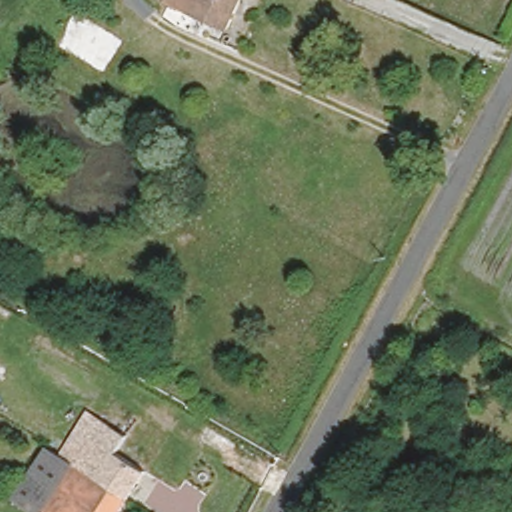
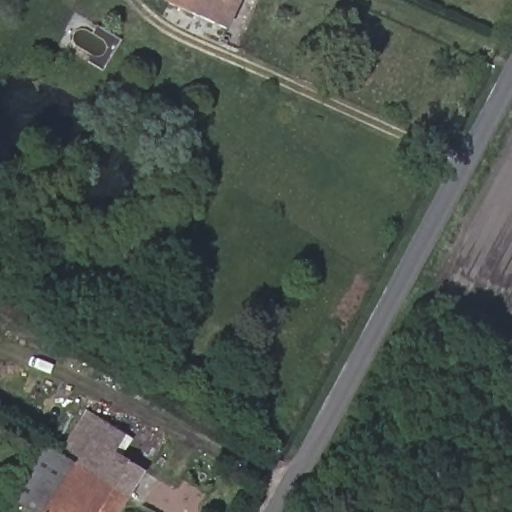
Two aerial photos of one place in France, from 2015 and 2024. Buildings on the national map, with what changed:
unchanged [(232,30),(167,3),(169,0),(246,0),(232,30)]
unchanged [(46,446),(62,454),(76,428),(112,450),(105,464),(129,480),(111,512),(110,512),(35,466),(46,446)]
unchanged [(110,512),(9,512),(35,466),(110,512)]

